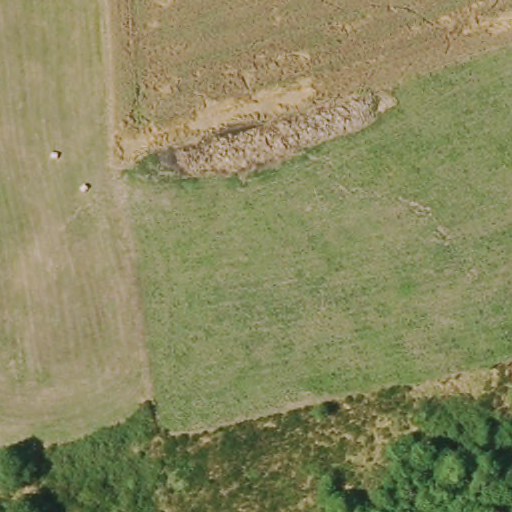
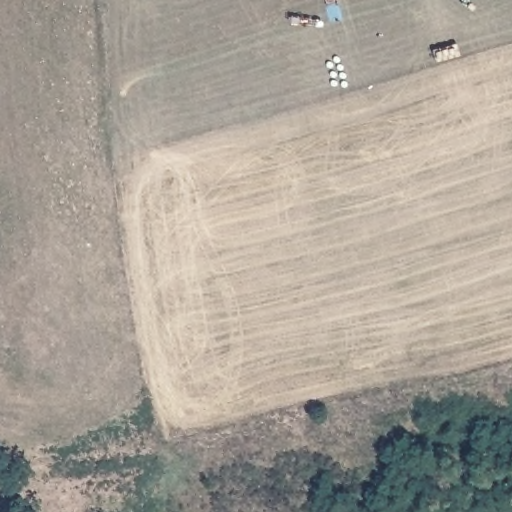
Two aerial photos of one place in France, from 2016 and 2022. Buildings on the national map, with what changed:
[]

